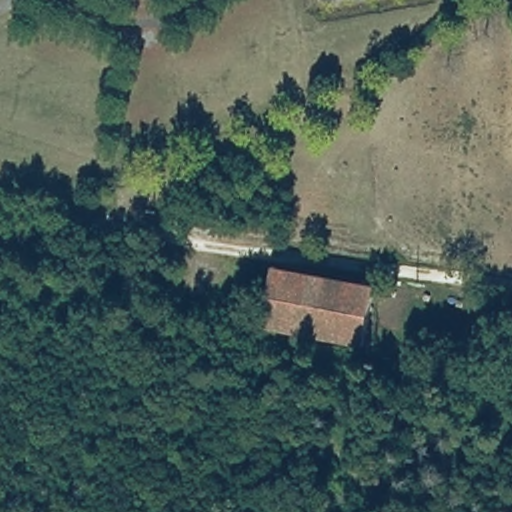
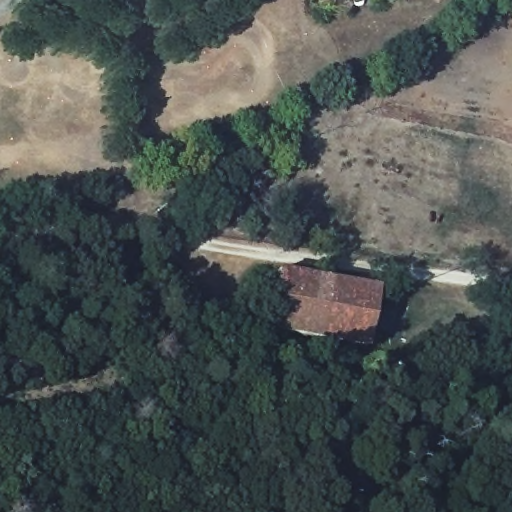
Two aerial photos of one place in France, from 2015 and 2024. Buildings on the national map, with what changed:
unchanged [(372,285),(365,346),(267,333),(272,269),(372,285)]

